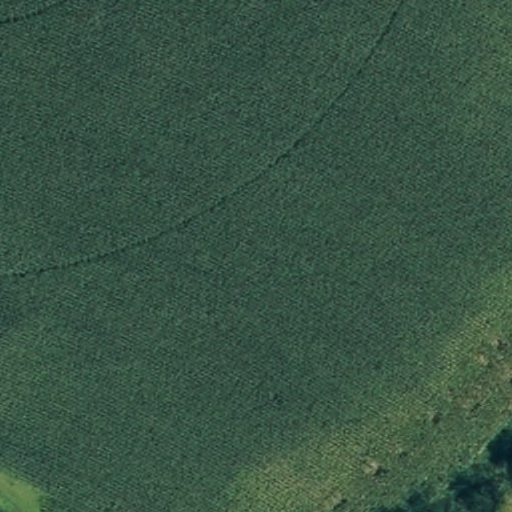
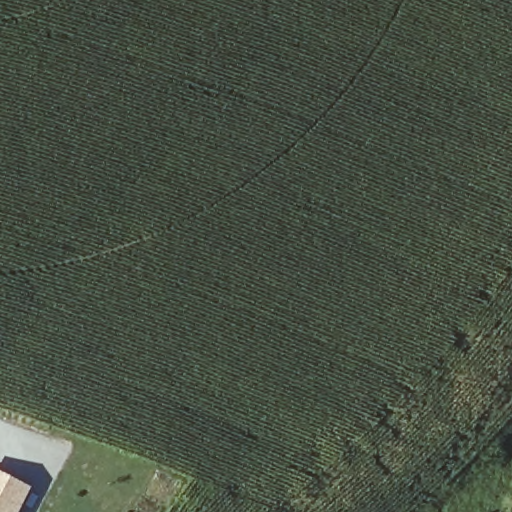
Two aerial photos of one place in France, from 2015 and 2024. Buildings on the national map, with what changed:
new [(29,487),(17,512),(0,512),(0,473),(29,487)]

